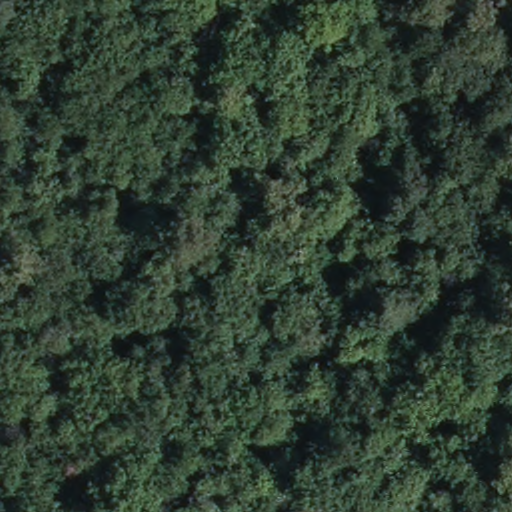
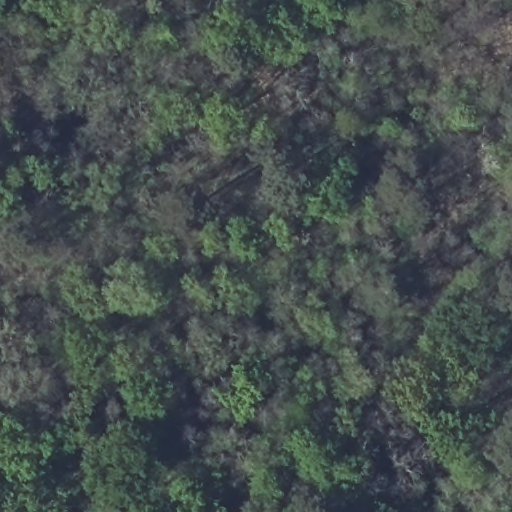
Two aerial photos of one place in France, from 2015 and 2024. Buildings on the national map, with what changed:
[]

